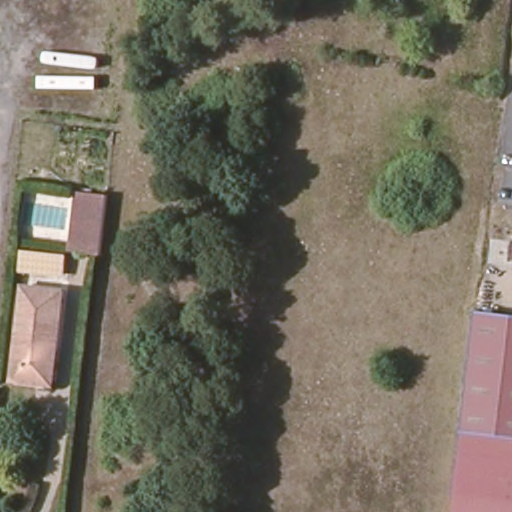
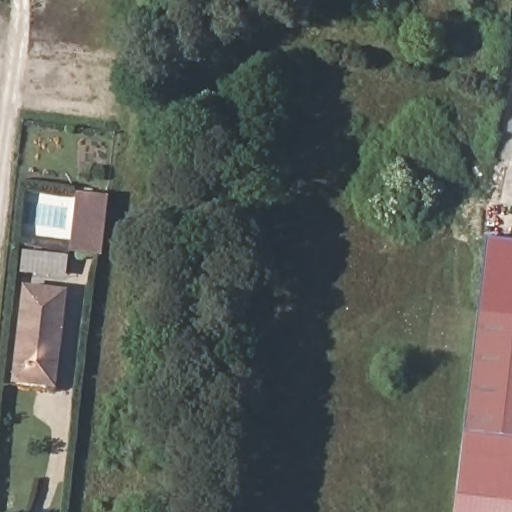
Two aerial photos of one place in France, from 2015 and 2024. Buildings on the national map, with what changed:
unchanged [(72,221),(76,190),(92,192),(107,193),(100,255),(86,253),(78,252),(69,251),(72,221)]
new [(487,238),(512,240),(512,311),(481,307),(487,238)]
unchanged [(50,386),(16,381),(27,287),(67,292),(60,352),(56,387),(50,386)]
unchanged [(512,311),(512,434),(466,430),(481,307),(512,311)]
unchanged [(465,433),(466,430),(512,434),(512,512),(455,512),(457,504),(465,433)]

